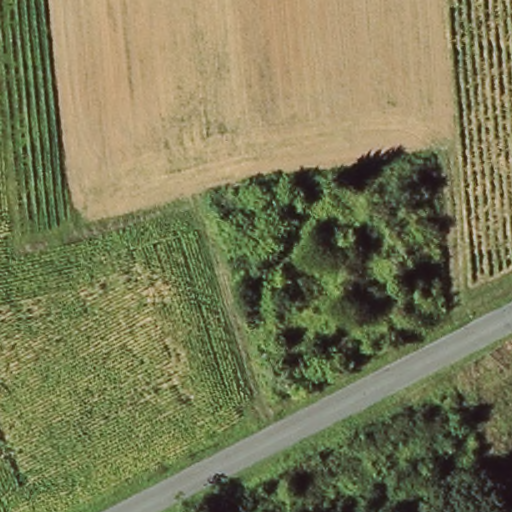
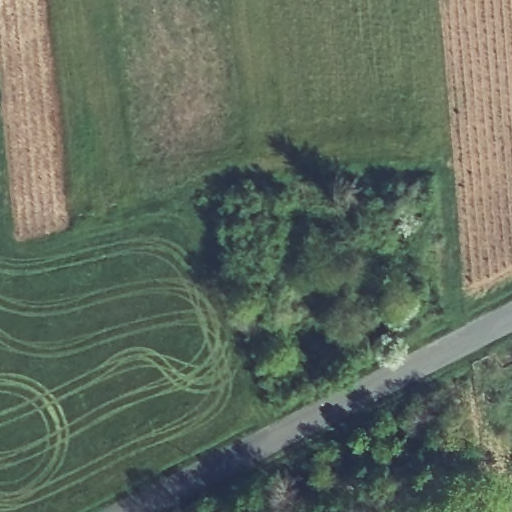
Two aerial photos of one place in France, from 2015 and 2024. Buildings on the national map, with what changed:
unchanged [(254,179),(255,193),(238,197),(235,184),(254,179)]

